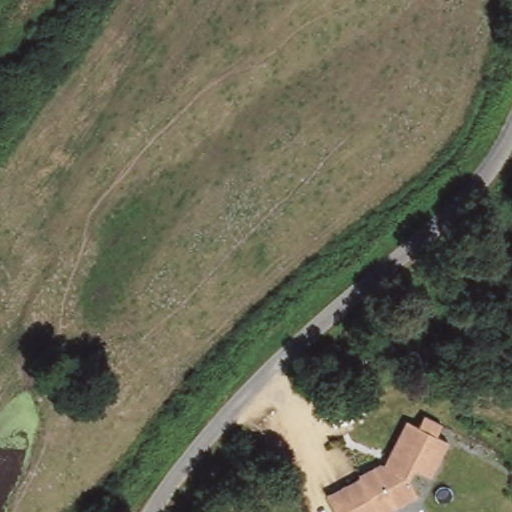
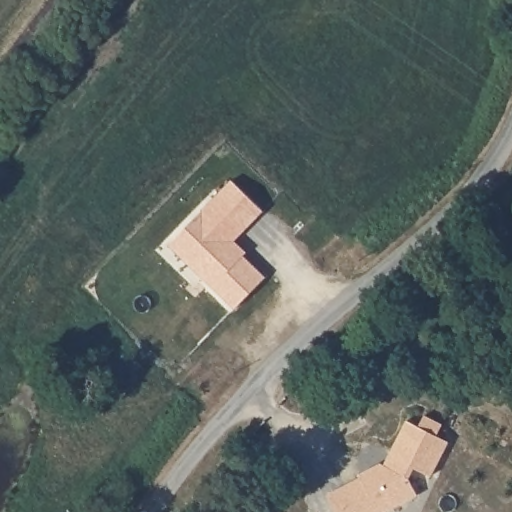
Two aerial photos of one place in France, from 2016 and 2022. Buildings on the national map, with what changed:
new [(231,180),(262,211),(230,243),(241,255),(265,277),(234,309),(203,279),(169,244),(175,237),(231,180)]
unchanged [(386,463),(406,422),(418,428),(423,419),(440,428),(435,439),(446,445),(430,478),(410,470),(406,477),(415,495),(386,512),(335,512),(328,497),(386,463)]

